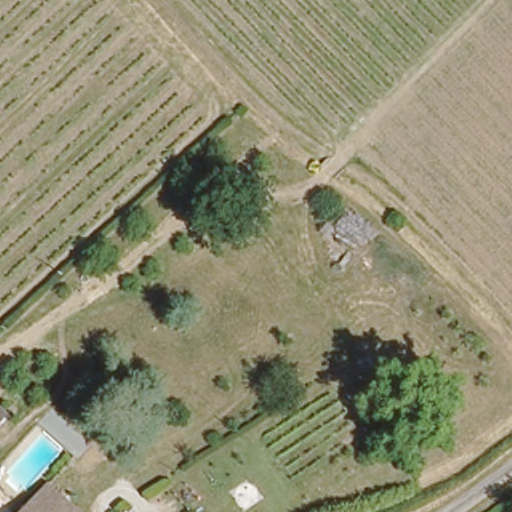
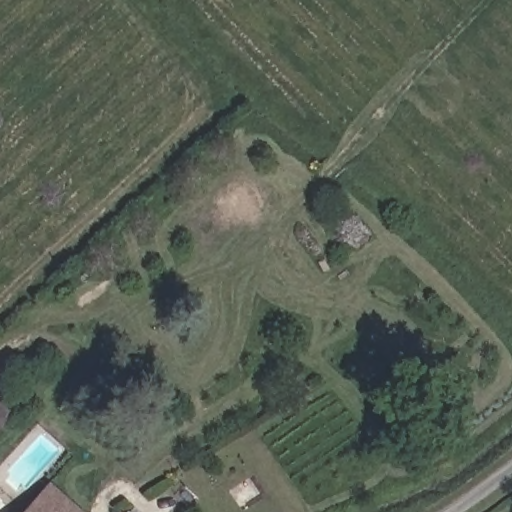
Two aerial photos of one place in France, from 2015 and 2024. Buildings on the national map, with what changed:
unchanged [(6,407),(0,414),(0,402),(6,407)]
unchanged [(86,507),(81,512),(20,512),(49,476),(86,507)]
unchanged [(125,503),(134,512),(116,512),(121,507),(125,503)]

